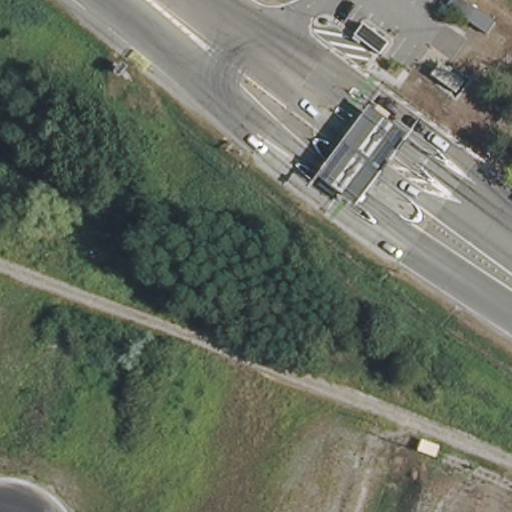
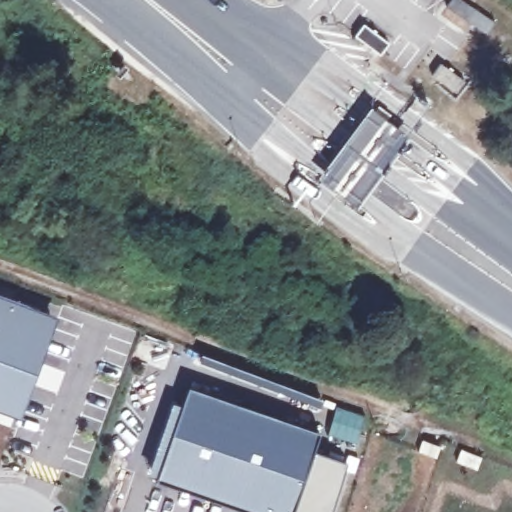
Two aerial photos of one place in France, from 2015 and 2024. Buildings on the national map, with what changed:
unchanged [(495,23),(487,35),(445,5),(449,0),(460,0),(495,23)]
new [(365,23),(390,43),(380,55),(362,40),(359,43),(353,38),(365,23)]
new [(353,46),(378,66),(369,78),(350,63),(347,66),(342,61),(353,46)]
unchanged [(405,145),(354,211),(315,181),(365,113),(405,145)]
new [(0,293),(55,313),(15,411),(0,405),(0,293)]
new [(247,512),(155,479),(188,384),(314,429),(290,512),(247,512)]
new [(336,405),(367,416),(357,444),(326,433),(336,405)]
new [(436,449),(432,459),(415,452),(418,442),(436,449)]

